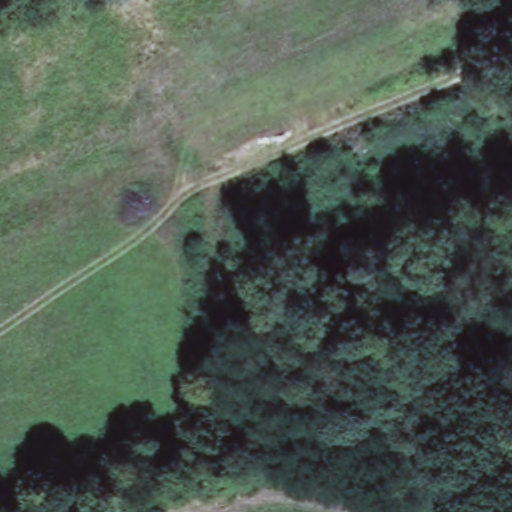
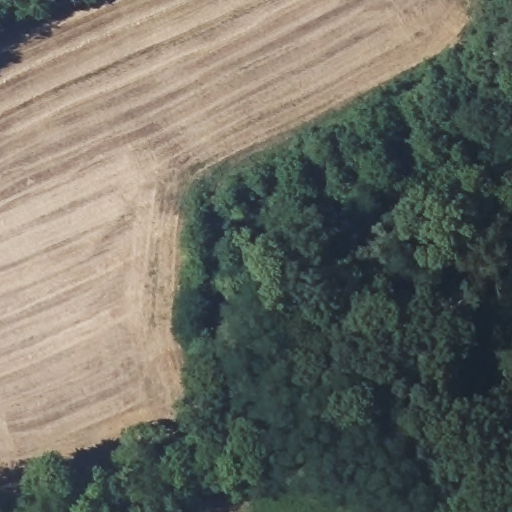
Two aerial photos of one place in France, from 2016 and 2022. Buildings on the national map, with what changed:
[]

